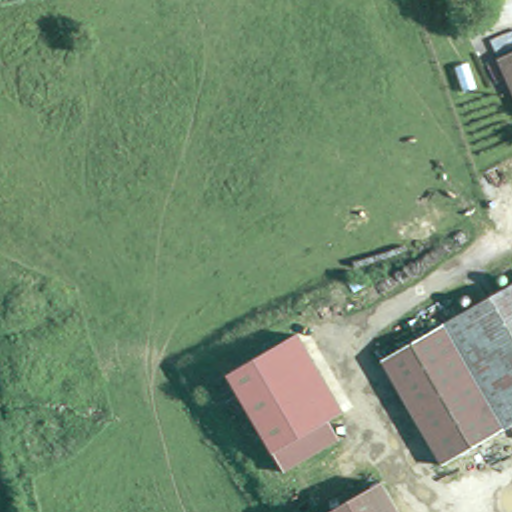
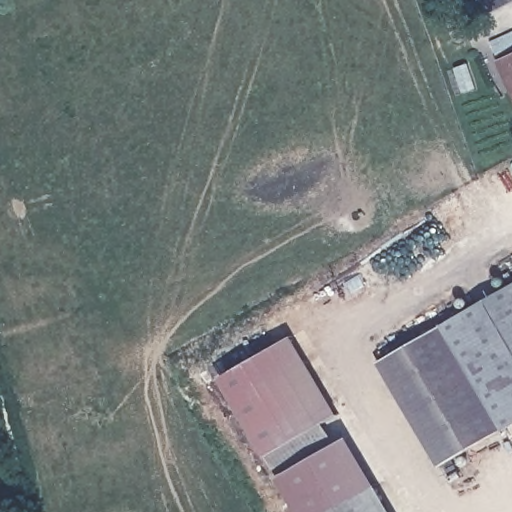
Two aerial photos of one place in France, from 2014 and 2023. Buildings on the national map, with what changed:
unchanged [(512,86),(500,66),(512,58),(512,86)]
unchanged [(512,422),(502,427),(445,320),(512,282),(512,422)]
unchanged [(445,320),(502,427),(440,462),(381,356),(445,320)]
unchanged [(286,472),(275,455),(228,376),(297,336),(342,412),(328,422),(338,440),(286,472)]
new [(334,512),(306,512),(283,473),(286,472),(338,440),(353,433),(398,512),(392,512),(378,486),(334,512)]
unchanged [(392,512),(334,512),(378,486),(392,512)]

